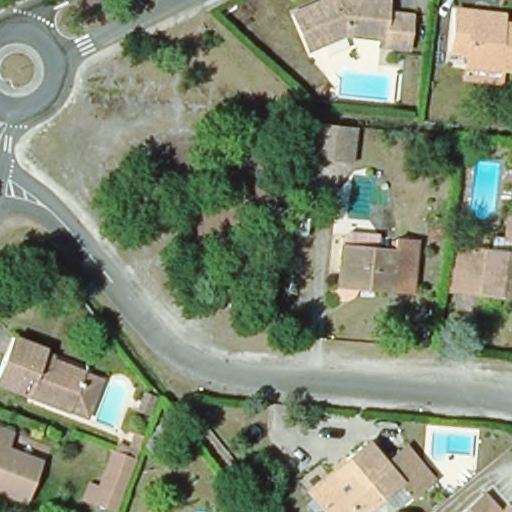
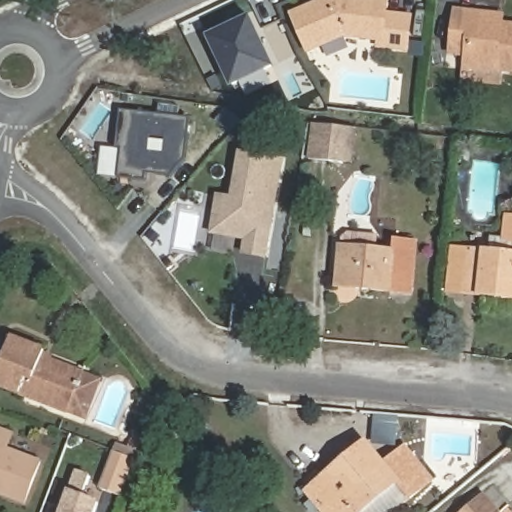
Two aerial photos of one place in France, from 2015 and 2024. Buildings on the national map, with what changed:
unchanged [(298,18),(334,0),(344,0),(345,4),(353,5),(357,0),(374,0),(390,2),(390,13),(415,16),(411,48),(385,45),(385,39),(350,34),(326,46),(315,51),(308,38),(298,18)]
unchanged [(466,76),(467,62),(468,51),(455,50),(460,6),(478,8),(507,11),(507,21),(512,22),(512,67),(504,66),(503,80),(466,76)]
new [(276,67),(231,89),(206,36),(251,15),(276,67)]
new [(192,121),(187,162),(173,179),(157,177),(157,173),(149,172),(147,184),(120,180),(123,151),(117,151),(122,113),(192,121)]
new [(353,164),(307,159),(311,123),(357,128),(353,164)]
new [(210,234),(212,219),(216,197),(221,198),(231,200),(239,154),(280,161),(263,258),(242,254),(244,240),(234,239),(210,234)]
unchanged [(487,254),(505,256),(509,220),(512,220),(512,299),(482,297),(487,254)]
unchanged [(393,252),(394,244),(413,245),(409,295),(334,289),(337,247),(393,252)]
unchanged [(443,293),(447,250),(487,254),(482,297),(443,293)]
unchanged [(65,411),(0,386),(0,354),(6,338),(40,350),(40,353),(50,357),(49,361),(80,373),(96,379),(82,417),(65,411)]
unchanged [(9,448),(42,463),(26,503),(0,493),(0,428),(15,434),(9,448)]
unchanged [(383,465),(403,449),(429,480),(408,497),(397,484),(363,512),(324,512),(311,498),(307,492),(346,459),(365,443),(383,465)]
unchanged [(111,452),(132,460),(122,488),(100,480),(111,452)]
new [(90,478),(81,498),(97,504),(94,512),(62,512),(77,473),(90,478)]
unchanged [(481,501),(491,512),(469,512),(481,501)]
unchanged [(505,510),(507,512),(503,512),(505,510)]

